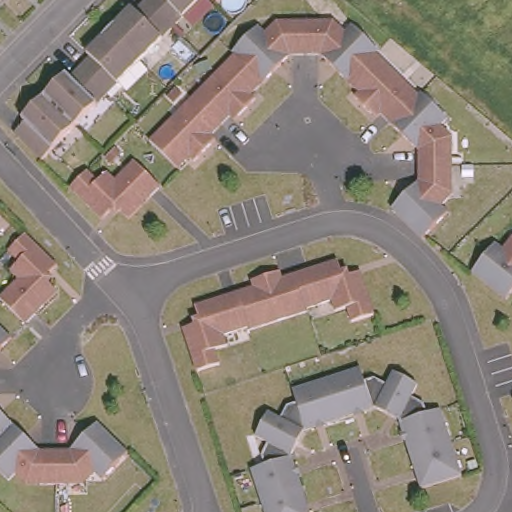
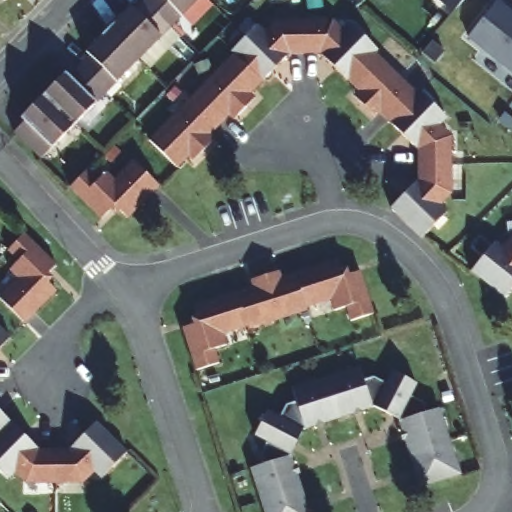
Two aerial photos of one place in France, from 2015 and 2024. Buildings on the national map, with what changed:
unchanged [(172,26),(140,59),(107,91),(74,125),(42,157),(15,130),(25,119),(21,117),(43,94),(67,71),(70,74),(80,64),(90,53),(87,50),(109,28),(132,6),(135,8),(143,0),(197,0),(172,26)]
unchanged [(452,12),(438,0),(462,0),(452,12)]
new [(512,8),(512,71),(471,34),(499,0),(502,0),(512,8)]
unchanged [(297,47),(270,75),(242,47),(240,45),(265,19),(272,26),(280,18),(297,18),(297,14),(312,14),(312,47),(297,47)]
unchanged [(327,47),(312,47),(312,14),(327,14),(327,17),(344,17),(352,25),(359,18),(385,44),(382,46),(355,74),(327,47)]
unchanged [(425,88),(398,116),(387,106),(382,111),(365,94),(370,89),(355,74),(382,46),(425,88)]
unchanged [(242,47),(270,75),(254,92),(259,96),(242,113),(237,109),(227,119),(199,91),(242,47)]
unchanged [(425,144),(398,116),(425,88),(428,86),(454,112),(447,119),(455,126),(455,144),(459,144),(459,158),(425,158),(425,144)]
unchanged [(227,119),(218,128),(222,133),(205,150),(201,146),(185,162),(157,134),(199,91),(227,119)]
unchanged [(161,181),(129,214),(120,204),(113,205),(103,214),(71,183),(88,166),(99,176),(107,167),(115,175),(135,156),(161,181)]
unchanged [(460,173),(455,173),(456,190),(448,198),(455,205),(430,231),(399,201),(426,173),(425,158),(459,158),(460,173)]
unchanged [(20,273),(12,265),(20,256),(10,246),(24,232),(25,231),(28,227),(59,260),(57,261),(49,270),(49,276),(59,286),(27,318),(1,293),(20,273)]
unchanged [(509,291),(475,265),(499,236),(506,242),(512,234),(512,287),(509,291)]
unchanged [(344,266),(350,269),(363,265),(377,307),(354,315),(349,301),(337,305),(334,294),(309,302),(297,267),(340,253),(344,266)]
unchanged [(309,302),(310,305),(250,324),(250,321),(238,286),(262,278),(260,272),(282,265),(284,271),(297,267),(309,302)]
unchanged [(250,321),(225,329),(228,340),(216,344),(220,358),(199,366),(185,323),(197,319),(200,313),(196,300),(238,286),(250,321)]
unchanged [(0,324),(14,337),(0,351),(0,324)]
unchanged [(365,361),(370,375),(379,402),(342,414),(330,373),(365,361)]
unchanged [(403,416),(401,410),(390,404),(389,407),(379,402),(370,375),(378,372),(390,379),(397,366),(421,379),(415,391),(427,397),(430,407),(403,416)]
unchanged [(342,414),(307,425),(297,397),(294,384),(330,373),(342,414)]
unchanged [(307,425),(302,436),(299,434),(293,445),(295,450),(282,454),(267,459),(264,451),(267,443),(270,438),(257,432),(269,407),(282,413),(288,400),(297,397),(307,425)]
unchanged [(414,449),(403,416),(430,407),(444,403),(455,436),(414,449)]
unchanged [(0,408),(15,422),(0,437),(0,408)]
unchanged [(72,449),(99,421),(130,451),(104,478),(97,471),(90,479),(72,479),(72,482),(57,482),(57,449),(72,449)]
unchanged [(43,483),(43,479),(25,479),(17,472),(11,479),(0,468),(0,437),(15,422),(42,449),(57,449),(57,482),(43,483)]
unchanged [(465,469),(424,482),(414,449),(455,436),(465,469)]
unchanged [(302,472),(305,483),(265,497),(254,463),(267,459),(282,454),(295,450),(302,472)]
unchanged [(269,512),(265,497),(305,483),(315,512),(269,512)]

